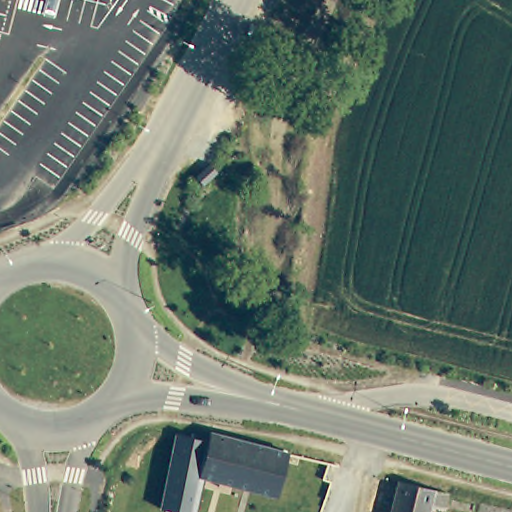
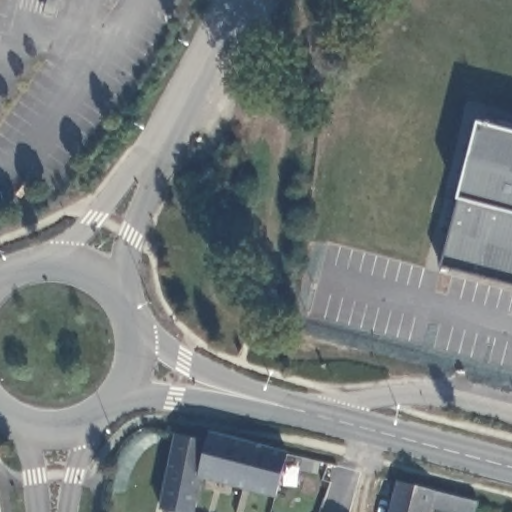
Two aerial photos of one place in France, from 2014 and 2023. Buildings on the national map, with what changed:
new [(460,197),(481,122),(512,130),(512,283),(441,265),(460,197)]
unchanged [(196,512),(175,508),(190,433),(192,434),(211,438),(221,440),(222,431),(298,451),(288,495),(212,474),(204,512),(196,512)]
unchanged [(462,496),(462,497),(458,512),(393,512),(400,481),(462,496)]

